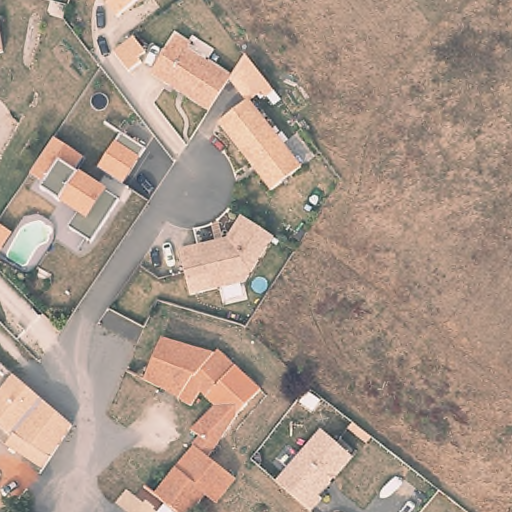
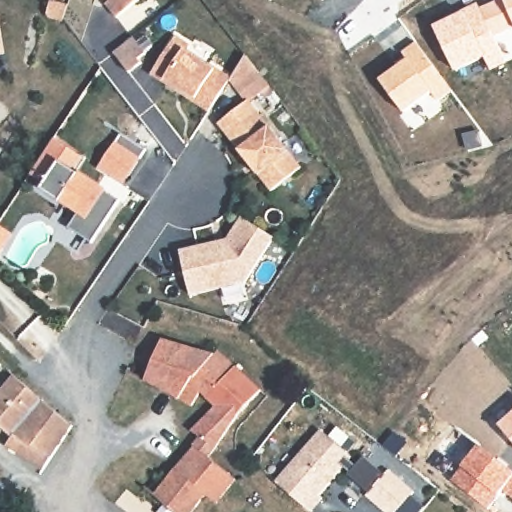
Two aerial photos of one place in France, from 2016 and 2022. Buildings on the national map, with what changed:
unchanged [(105,5),(109,2),(107,0),(136,0),(116,17),(105,5)]
new [(320,0),(322,0),(322,1),(320,0)]
new [(509,61),(492,70),(483,57),(455,71),(433,26),(464,11),(462,9),(478,1),(480,6),(494,0),(512,0),(512,28),(494,36),(509,61)]
unchanged [(174,42),(188,50),(185,55),(229,82),(208,115),(151,79),(174,42)]
new [(415,42),(452,90),(437,101),(430,93),(403,112),(379,78),(406,59),(401,51),(415,42)]
unchanged [(2,56),(0,56),(0,46),(2,56)]
unchanged [(247,104),(301,169),(272,193),(218,127),(247,104)]
unchanged [(147,151),(124,186),(99,169),(123,134),(147,151)]
unchanged [(85,158),(76,171),(120,201),(91,243),(68,227),(79,212),(62,201),(61,202),(42,189),(46,184),(32,173),(38,164),(56,138),(85,158)]
unchanged [(229,242),(243,219),(251,225),(274,239),(246,283),(193,297),(182,254),(229,242)]
new [(17,232),(7,246),(0,255),(0,221),(17,232)]
unchanged [(203,436),(195,429),(196,428),(206,415),(217,403),(200,388),(191,403),(161,387),(144,377),(162,340),(165,336),(217,352),(220,349),(235,362),(264,390),(242,412),(210,456),(236,477),(217,502),(206,493),(191,512),(179,512),(155,492),(203,436)]
unchanged [(11,435),(0,425),(0,390),(14,373),(72,425),(70,429),(56,450),(40,470),(15,450),(6,443),(11,435)]
new [(512,440),(499,424),(512,412),(512,440)]
unchanged [(329,488),(328,487),(317,500),(321,502),(313,512),(305,512),(276,487),(321,435),(352,461),(334,481),(335,482),(329,488)]
new [(451,480),(460,465),(479,446),(512,472),(512,496),(503,490),(500,494),(486,507),(451,480)]
new [(416,491),(395,512),(384,512),(366,496),(368,492),(350,476),(367,457),(386,472),(389,468),(416,491)]

